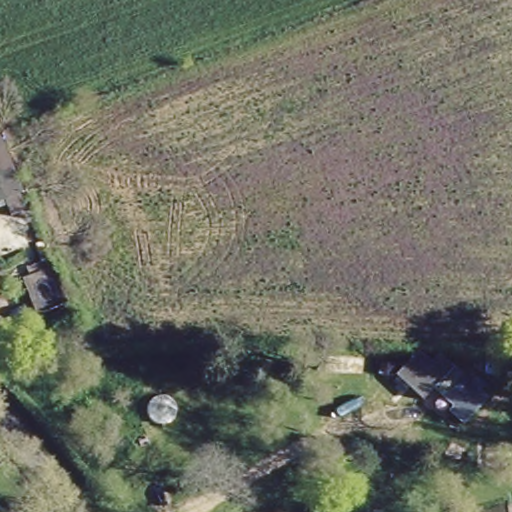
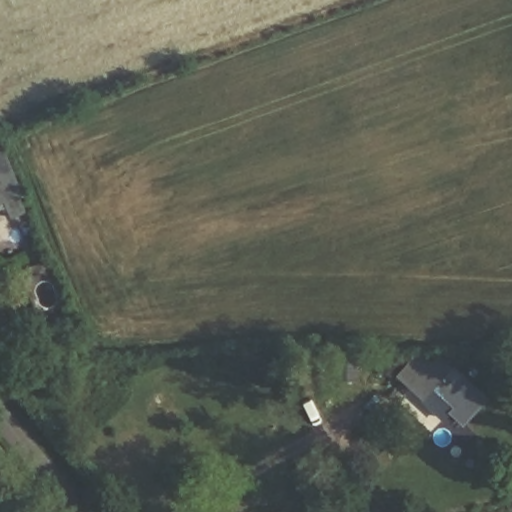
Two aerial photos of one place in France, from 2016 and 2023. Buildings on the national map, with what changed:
unchanged [(7,198),(0,200),(0,177),(7,198)]
unchanged [(416,350),(428,359),(437,352),(487,398),(464,425),(447,410),(450,405),(432,389),(422,399),(395,375),(416,350)]

